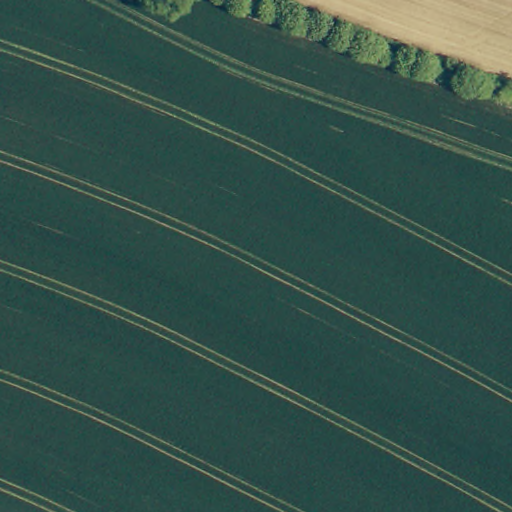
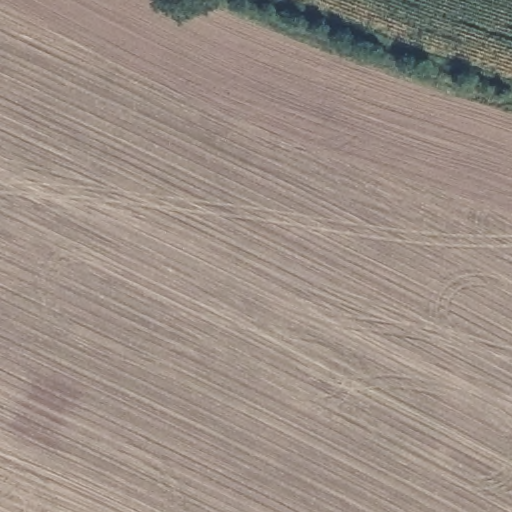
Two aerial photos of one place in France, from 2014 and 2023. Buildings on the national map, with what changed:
[]

